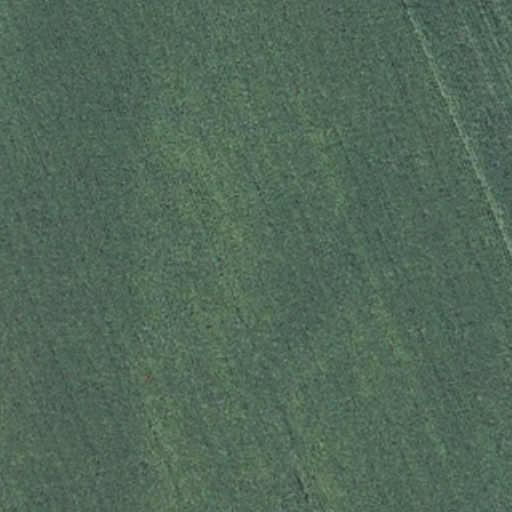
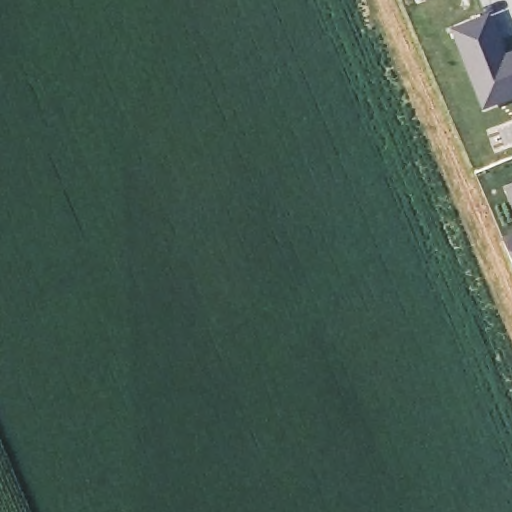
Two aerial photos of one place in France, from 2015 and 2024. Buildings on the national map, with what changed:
new [(491,14),(506,54),(512,51),(512,98),(481,110),(450,28),(491,14)]
new [(512,182),(512,201),(505,185),(512,182)]
new [(512,233),(512,262),(501,237),(512,233)]

